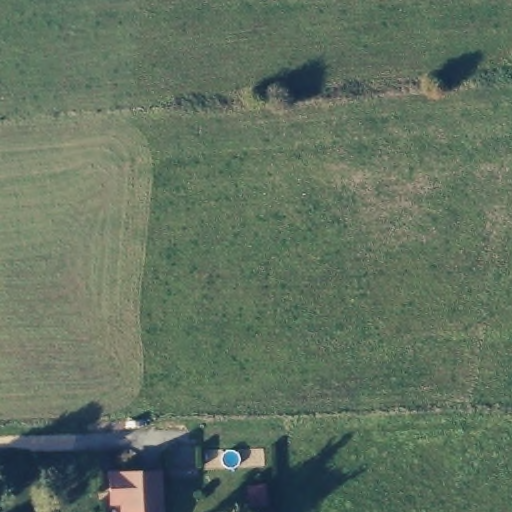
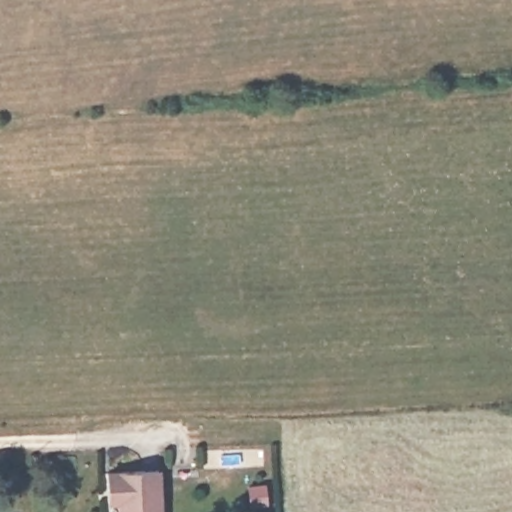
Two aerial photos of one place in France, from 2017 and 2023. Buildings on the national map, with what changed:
unchanged [(163,471),(166,512),(128,512),(127,498),(114,499),(114,487),(114,472),(163,471)]

